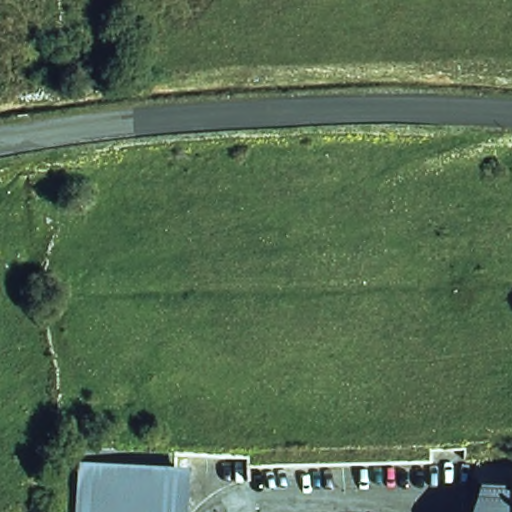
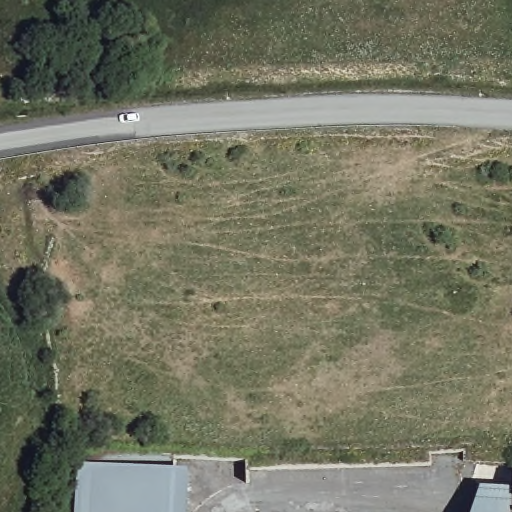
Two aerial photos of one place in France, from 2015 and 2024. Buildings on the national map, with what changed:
unchanged [(185,512),(77,512),(78,458),(187,461),(185,512)]
unchanged [(509,487),(512,473),(512,474),(512,512),(472,512),(479,485),(509,487)]

